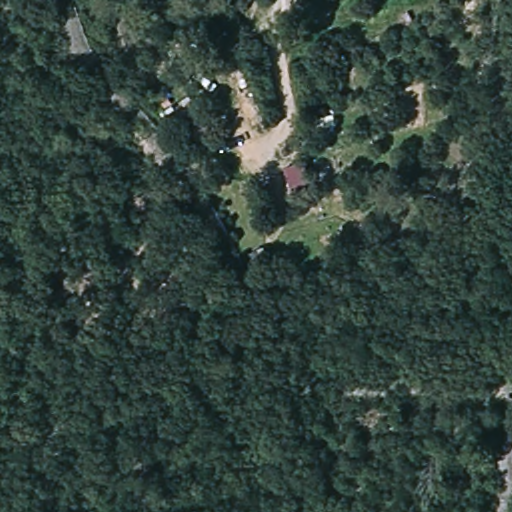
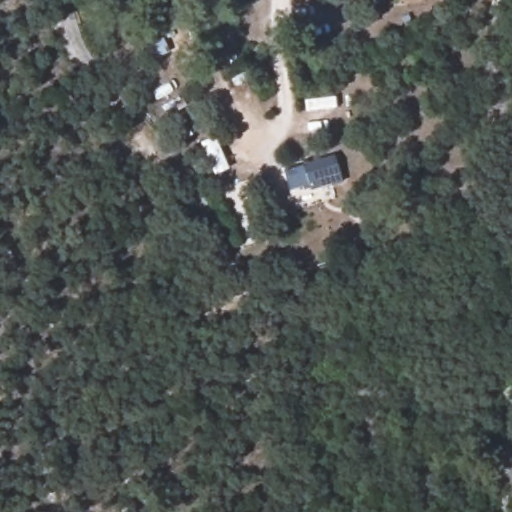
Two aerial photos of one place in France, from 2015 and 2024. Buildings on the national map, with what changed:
new [(303,164),(302,162),(335,154),(343,182),(309,190),(307,184),(289,189),(283,169),(303,164)]

